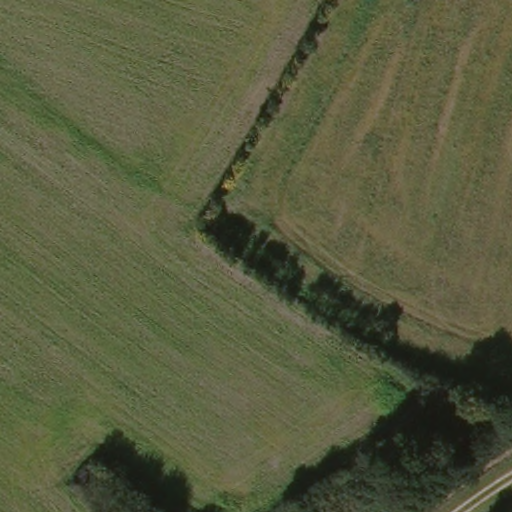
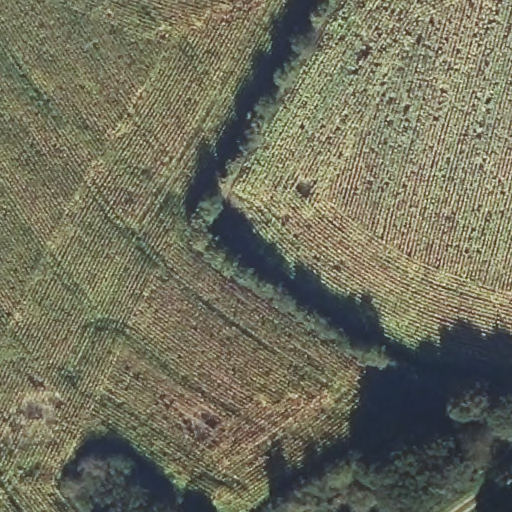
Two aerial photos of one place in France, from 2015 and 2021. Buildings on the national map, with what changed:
[]

